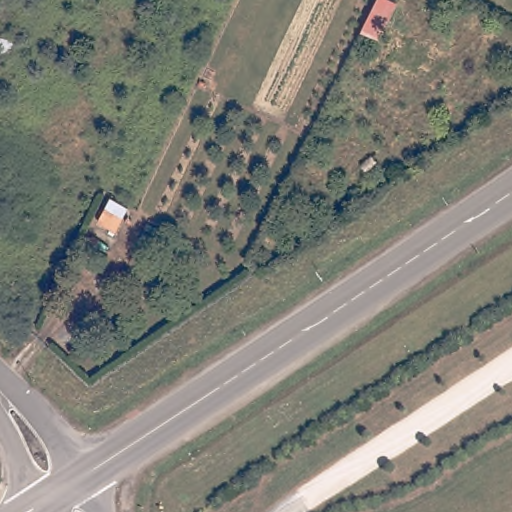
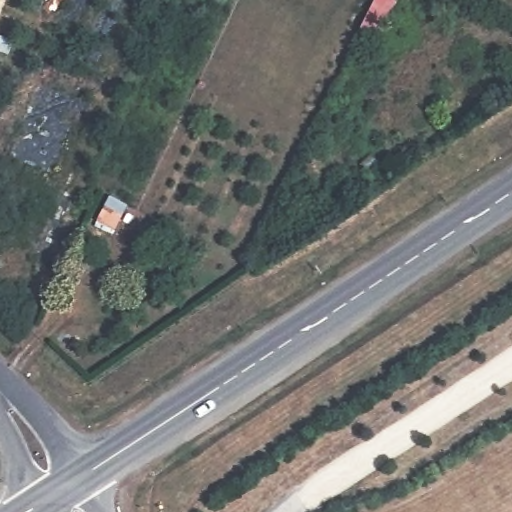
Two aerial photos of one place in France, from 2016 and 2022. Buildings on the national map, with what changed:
unchanged [(376,0),(398,0),(400,1),(383,36),(362,29),(376,0)]
unchanged [(135,205),(116,248),(92,236),(114,194),(135,205)]

